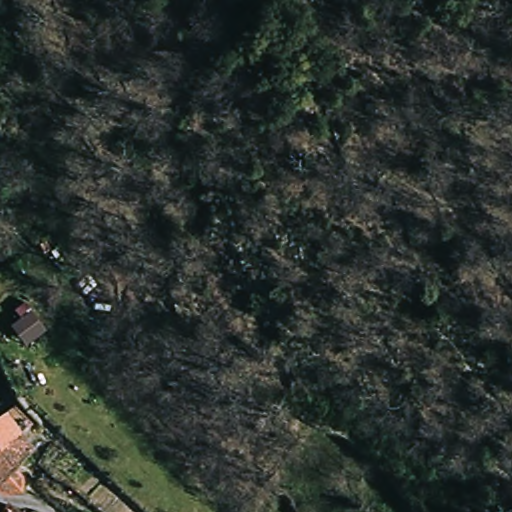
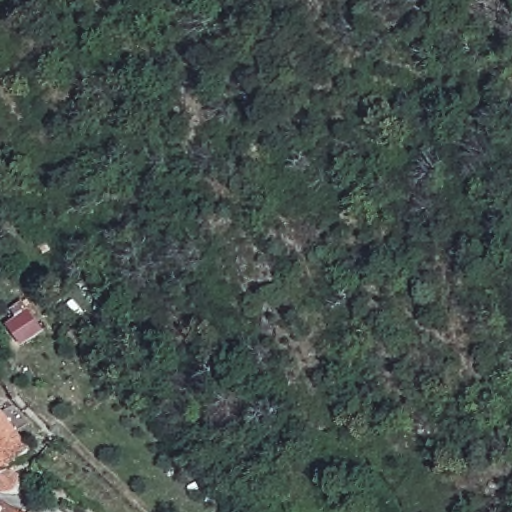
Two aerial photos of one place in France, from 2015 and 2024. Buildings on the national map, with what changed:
unchanged [(33,318),(49,339),(26,358),(9,338),(33,318)]
unchanged [(21,430),(0,445),(0,412),(6,408),(21,430)]
unchanged [(0,487),(0,445),(21,430),(35,450),(18,472),(1,488),(0,487)]

